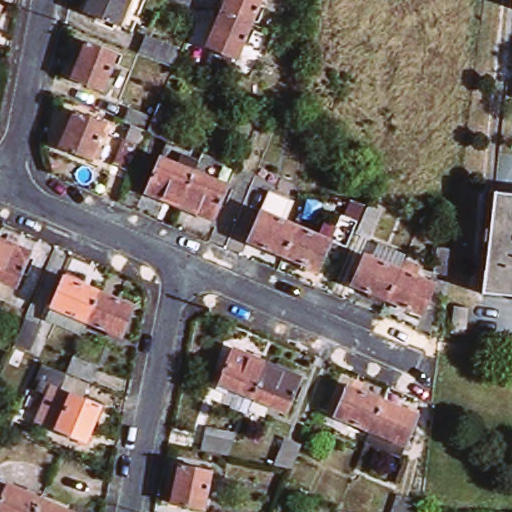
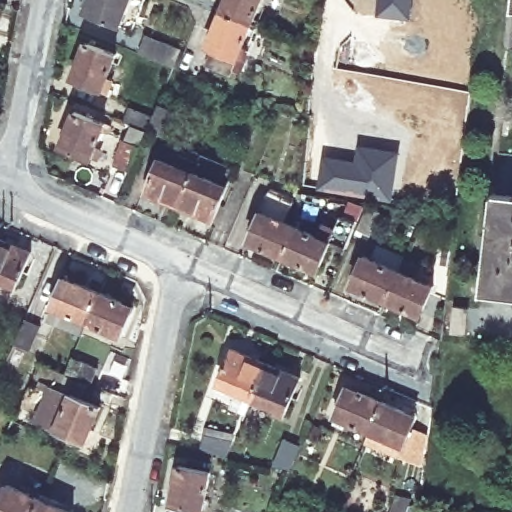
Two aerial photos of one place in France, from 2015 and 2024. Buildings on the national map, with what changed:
unchanged [(84,16),(90,0),(130,0),(119,29),(84,16)]
unchanged [(226,8),(229,0),(265,0),(257,20),(226,8)]
new [(356,14),(353,5),(348,0),(413,0),(411,19),(356,14)]
unchanged [(236,72),(212,62),(219,46),(211,43),(226,8),(257,20),(236,72)]
unchanged [(1,16),(0,18),(0,16),(1,16)]
unchanged [(142,53),(150,35),(183,47),(175,66),(142,53)]
unchanged [(117,58),(102,94),(73,81),(87,46),(117,58)]
unchanged [(182,115),(170,141),(152,134),(129,125),(134,111),(158,120),(164,107),(182,115)]
unchanged [(108,130),(94,167),(64,154),(79,118),(108,130)]
unchanged [(144,148),(133,174),(117,167),(129,141),(144,148)]
new [(321,155),(354,160),(357,144),(399,150),(391,201),(316,189),(321,155)]
unchanged [(194,179),(202,159),(236,173),(213,227),(179,213),(194,179)]
unchanged [(159,164),(194,179),(179,213),(144,198),(159,164)]
unchanged [(297,231),(284,261),(249,246),(269,196),(294,207),(287,227),(297,231)]
unchanged [(512,305),(483,301),(495,200),(512,202),(512,305)]
unchanged [(382,216),(371,240),(357,234),(368,210),(382,216)]
unchanged [(319,240),(325,228),(336,232),(342,219),(356,226),(345,251),(332,245),(319,275),(284,261),(297,231),(319,240)]
unchanged [(2,241),(0,246),(0,240),(2,241)]
unchanged [(0,282),(0,246),(2,241),(35,255),(19,290),(0,282)]
unchanged [(399,277),(385,308),(349,293),(364,262),(399,277)]
unchanged [(435,292),(422,323),(385,308),(399,277),(435,292)]
unchanged [(50,312),(62,283),(100,299),(88,328),(50,312)]
unchanged [(88,328),(100,299),(135,314),(123,343),(88,328)]
demolished [(466,307),(464,335),(447,333),(451,305),(466,307)]
unchanged [(25,320),(42,327),(31,353),(14,346),(25,320)]
unchanged [(268,368),(254,403),(219,389),(235,354),(268,368)]
unchanged [(103,369),(98,383),(73,373),(79,358),(103,369)]
unchanged [(71,377),(65,390),(41,381),(46,368),(71,377)]
unchanged [(302,382),(286,417),(254,403),(268,368),(302,382)]
unchanged [(76,396),(77,395),(107,407),(92,443),(44,423),(58,390),(76,396)]
unchanged [(340,420),(352,390),(387,405),(375,435),(340,420)]
unchanged [(375,435),(387,405),(422,419),(408,449),(375,435)]
unchanged [(235,435),(230,449),(202,443),(205,428),(235,435)]
unchanged [(293,468),(273,464),(285,438),(303,444),(293,468)]
unchanged [(211,480),(204,512),(172,512),(180,474),(211,480)]
unchanged [(8,490),(40,503),(36,512),(0,512),(0,507),(8,490)]
unchanged [(422,508),(422,512),(392,512),(399,492),(413,497),(411,504),(423,506),(422,508)]
unchanged [(40,503),(61,512),(36,512),(40,503)]

